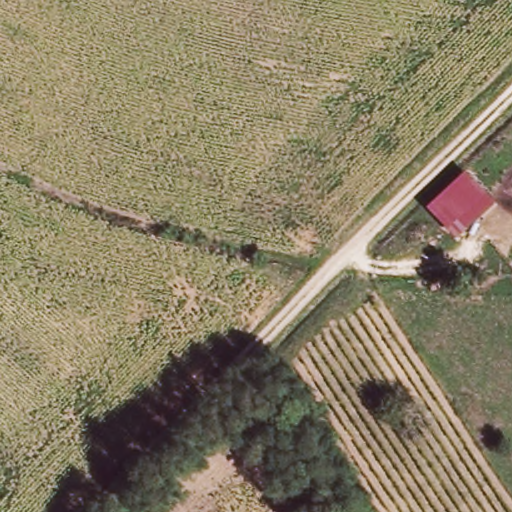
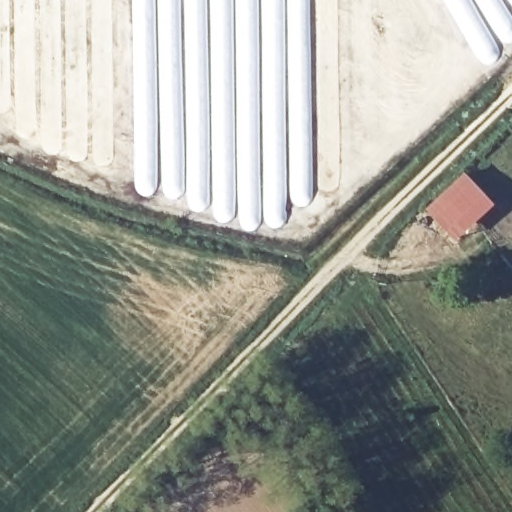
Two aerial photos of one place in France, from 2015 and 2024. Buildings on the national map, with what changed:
new [(312,207),(288,205),(284,227),(238,226),(220,222),(210,214),(184,207),(185,200),(170,199),(155,195),(138,192),(133,179),(133,36),(131,0),(310,0),(314,181),(312,207)]
new [(504,48),(487,67),(471,49),(442,0),(473,0),(476,4),(504,48)]
new [(473,0),(481,0),(476,4),(473,0)]
unchanged [(498,203),(459,240),(430,207),(468,172),(498,203)]

